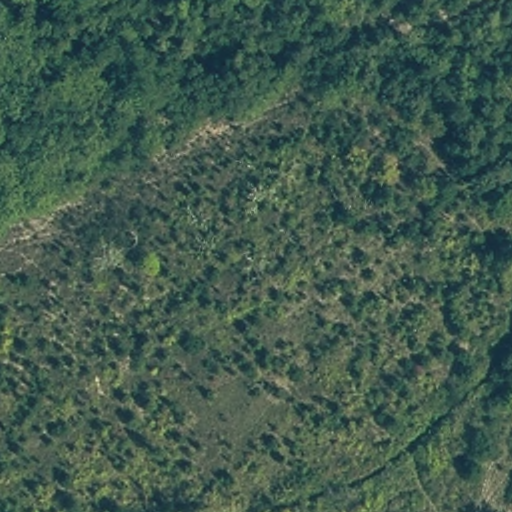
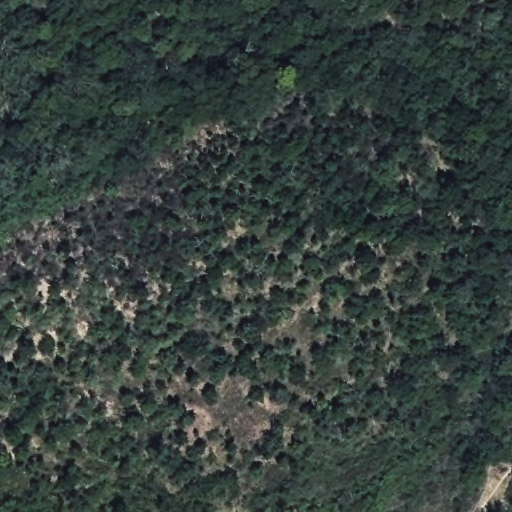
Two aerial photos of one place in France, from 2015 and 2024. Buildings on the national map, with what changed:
[]

